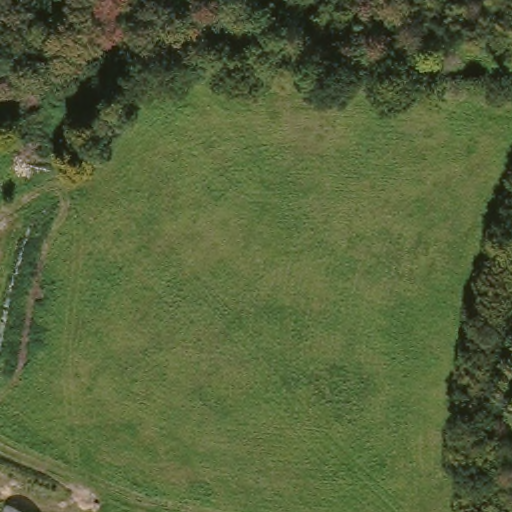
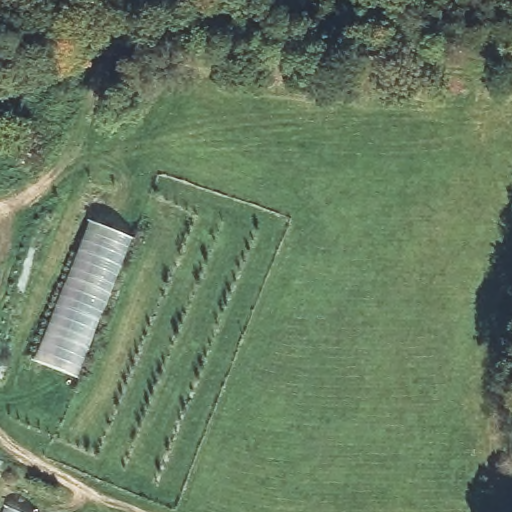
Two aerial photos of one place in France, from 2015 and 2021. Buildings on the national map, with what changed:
new [(36,361),(91,222),(130,240),(72,377),(36,361)]
unchanged [(8,508),(16,512),(6,512),(8,508)]

